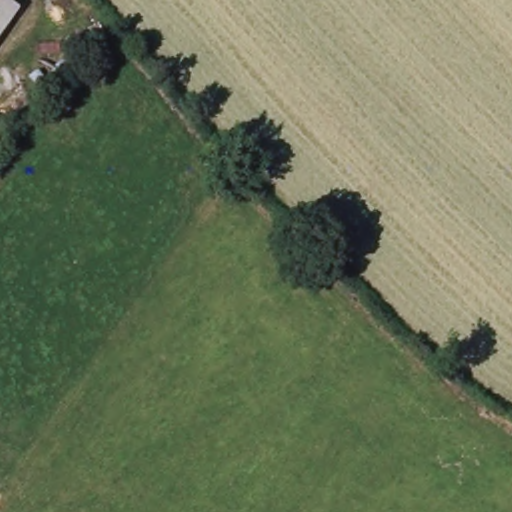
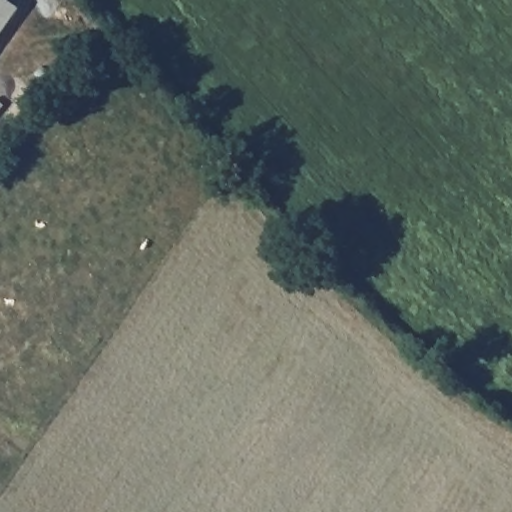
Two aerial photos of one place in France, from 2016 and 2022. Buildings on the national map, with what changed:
unchanged [(17,4),(0,28),(0,0),(12,0),(17,4)]

